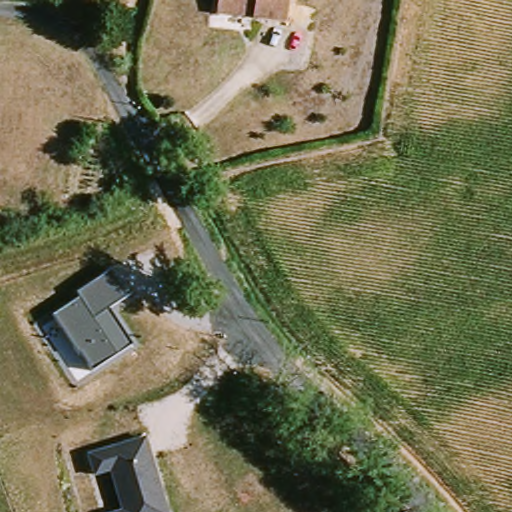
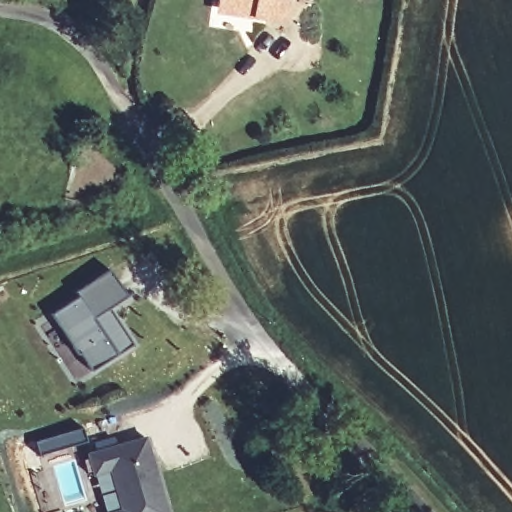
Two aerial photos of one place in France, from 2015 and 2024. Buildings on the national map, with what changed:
unchanged [(223,10),(225,0),(293,0),(289,21),(223,10)]
unchanged [(124,297),(109,308),(133,344),(90,372),(53,316),(79,300),(75,294),(107,272),(124,297)]
new [(86,442),(39,456),(35,442),(82,428),(86,442)]
unchanged [(146,436),(170,512),(114,512),(124,510),(113,471),(95,476),(89,453),(146,436)]

